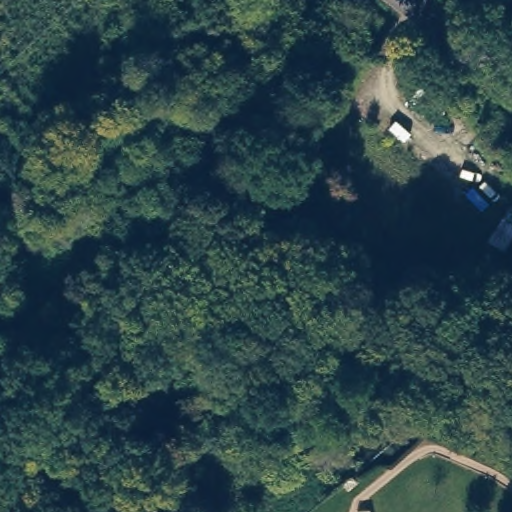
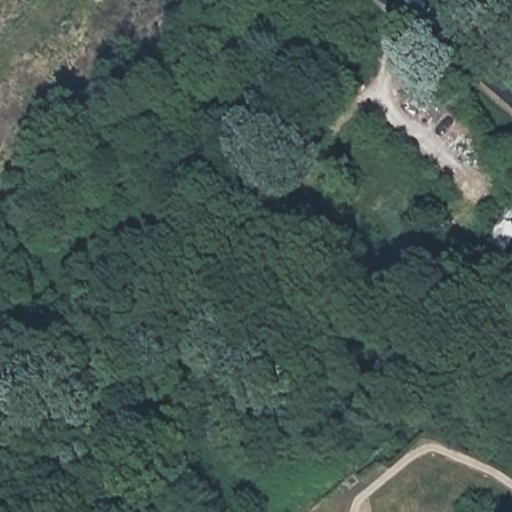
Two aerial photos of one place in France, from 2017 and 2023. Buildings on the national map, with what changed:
unchanged [(512,244),(503,239),(505,232),(498,228),(506,215),(511,211),(512,212),(512,244)]

